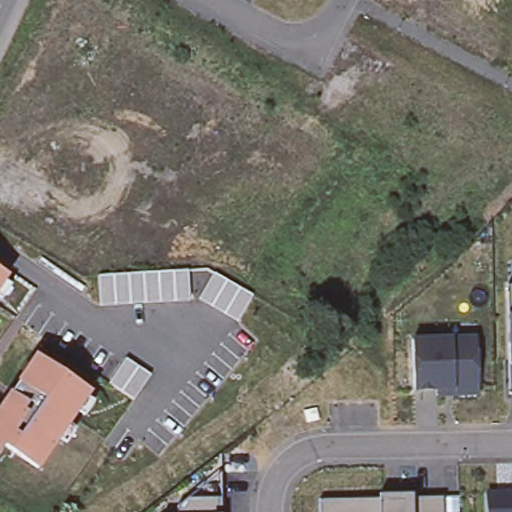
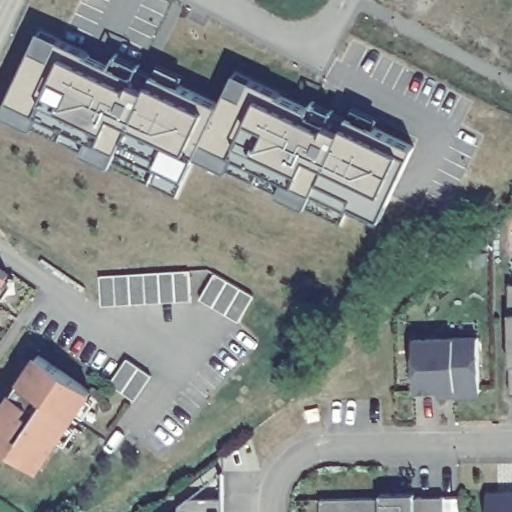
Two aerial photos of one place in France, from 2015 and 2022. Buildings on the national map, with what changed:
new [(0,111),(40,30),(87,51),(112,64),(116,54),(153,73),(159,64),(188,78),(185,88),(219,105),(235,73),(309,109),(313,101),(350,117),(355,108),(382,118),(377,130),(417,148),(382,224),(348,208),(342,224),(310,209),(305,215),(270,199),(277,182),(233,161),(227,173),(197,157),(184,182),(176,198),(150,184),(113,166),(81,152),(87,139),(41,116),(35,132),(0,114),(0,111)]
unchanged [(0,269),(12,277),(0,294),(0,269)]
unchanged [(103,309),(102,279),(190,273),(192,302),(103,309)]
unchanged [(240,324),(200,303),(216,274),(253,297),(240,324)]
unchanged [(508,392),(507,288),(507,282),(512,281),(512,391),(508,392)]
unchanged [(440,391),(418,392),(417,342),(481,339),(482,389),(478,397),(463,397),(441,398),(440,391)]
unchanged [(6,447),(0,456),(0,409),(37,354),(93,392),(41,471),(6,447)]
unchanged [(135,404),(108,385),(127,359),(152,376),(135,404)]
unchanged [(320,409),(323,421),(310,424),(308,412),(320,409)]
unchanged [(220,473),(220,512),(168,512),(220,473)]
unchanged [(485,491),(512,490),(512,512),(486,512),(485,491)]
unchanged [(448,512),(324,512),(323,502),(383,500),(383,496),(417,496),(417,499),(447,499),(448,512)]

